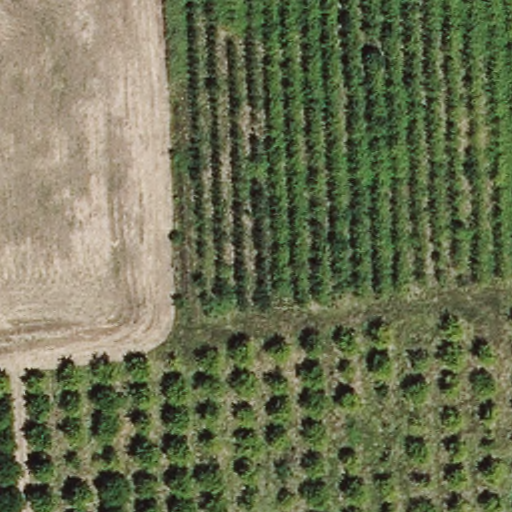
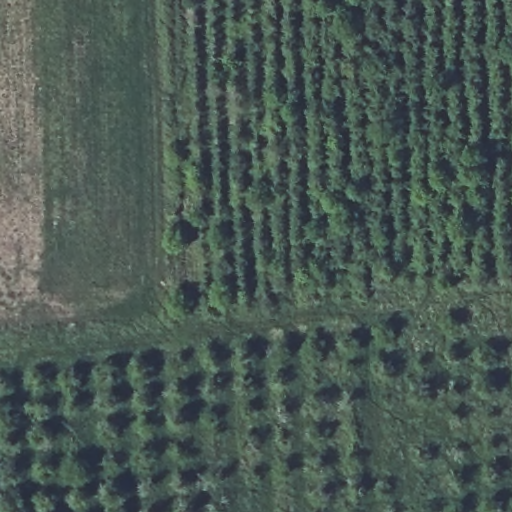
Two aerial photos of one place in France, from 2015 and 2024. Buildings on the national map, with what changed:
[]

